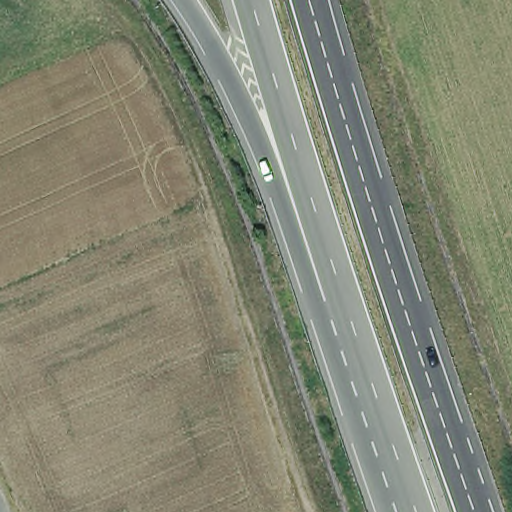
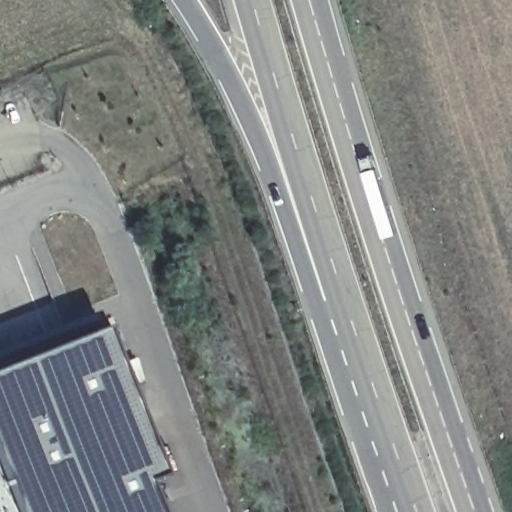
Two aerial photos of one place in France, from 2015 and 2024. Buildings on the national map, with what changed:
new [(110,329),(172,476),(155,483),(166,512),(0,512),(0,372),(110,329)]

